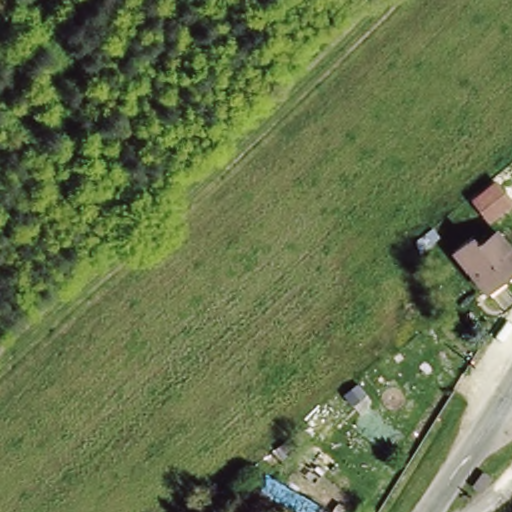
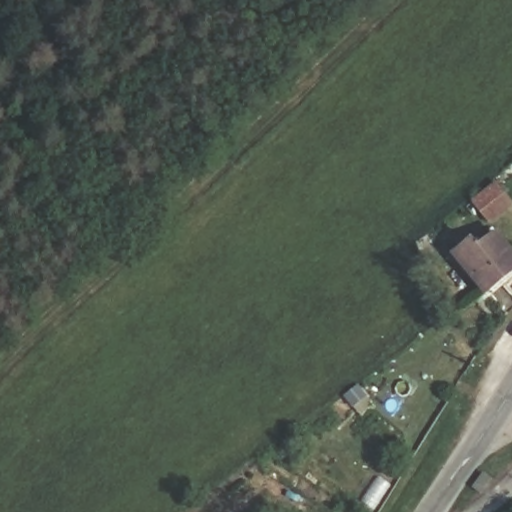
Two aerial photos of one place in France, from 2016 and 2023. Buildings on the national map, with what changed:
unchanged [(509,200),(485,219),(469,199),(493,180),(509,200)]
unchanged [(512,266),(485,289),(453,251),(474,234),(480,242),(497,227),(512,245),(512,266)]

